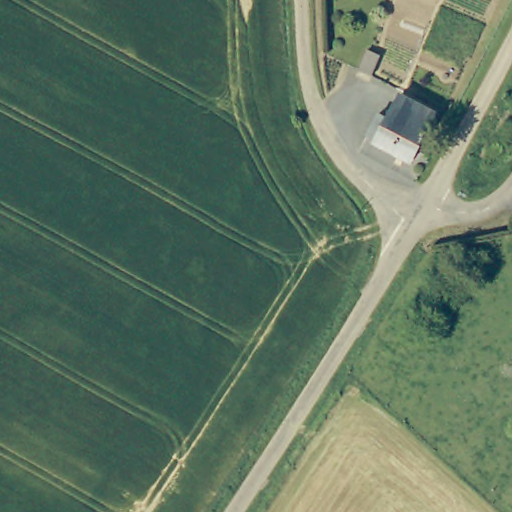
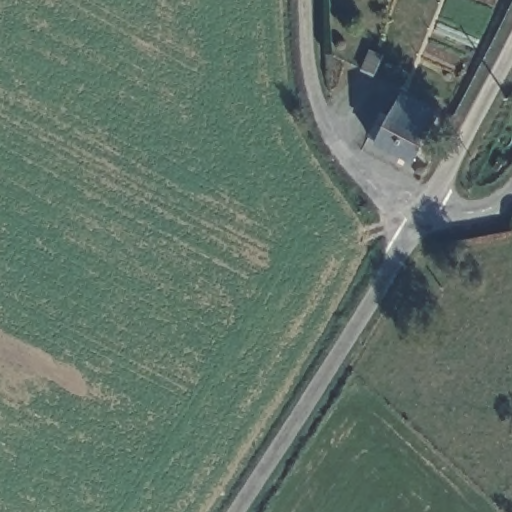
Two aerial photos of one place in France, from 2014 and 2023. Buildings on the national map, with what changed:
unchanged [(380,55),(370,75),(360,69),(368,49),(380,55)]
unchanged [(432,110),(406,158),(366,135),(380,113),(387,116),(395,100),(404,96),(432,110)]

